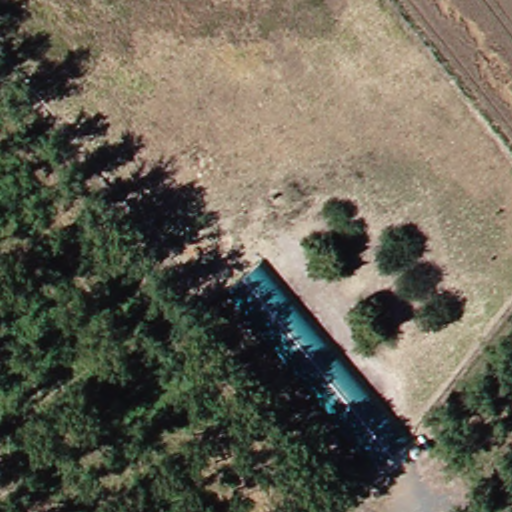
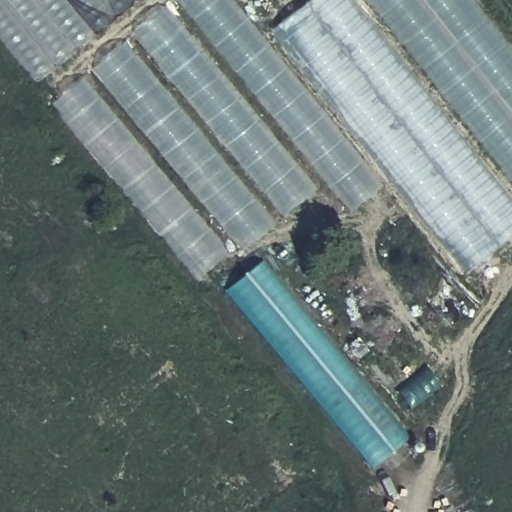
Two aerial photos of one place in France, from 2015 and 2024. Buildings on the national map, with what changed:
new [(31,85),(0,46),(0,0),(143,0),(31,85)]
new [(348,212),(173,0),(174,0),(226,0),(380,187),(348,212)]
new [(270,31),(310,0),(346,0),(512,210),(512,234),(463,274),(270,31)]
new [(512,59),(512,191),(362,0),(465,0),(512,59)]
new [(280,219),(128,36),(161,7),(314,191),(280,219)]
new [(238,252),(88,72),(120,44),(273,226),(238,252)]
new [(192,282),(48,106),(79,80),(226,254),(192,282)]
unchanged [(229,290),(264,263),(408,444),(374,470),(229,290)]

